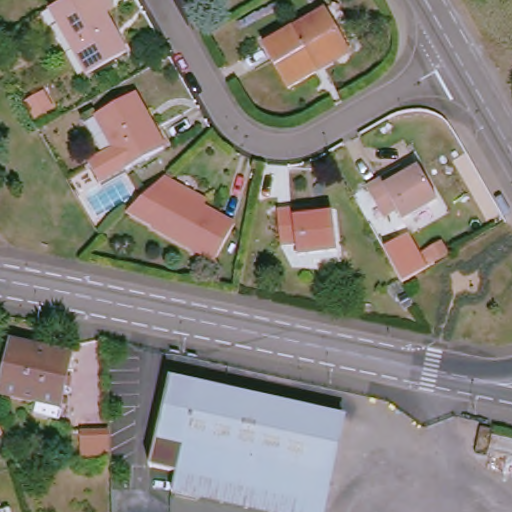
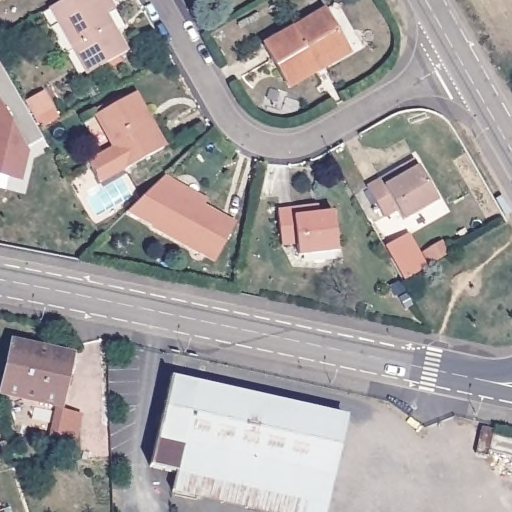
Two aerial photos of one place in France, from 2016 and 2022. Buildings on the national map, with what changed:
unchanged [(97,0),(108,0),(113,9),(105,15),(116,40),(119,39),(127,52),(87,74),(58,24),(97,0)]
unchanged [(273,49),(333,14),(353,49),(321,68),(326,75),(298,91),(273,49)]
new [(43,139),(27,148),(23,182),(0,175),(0,65),(43,139)]
unchanged [(43,94),(51,108),(35,117),(26,103),(43,94)]
unchanged [(97,160),(123,148),(107,115),(142,95),(172,148),(136,169),(134,165),(107,180),(97,160)]
unchanged [(400,218),(388,224),(372,195),(403,177),(407,183),(423,175),(442,209),(409,228),(400,218)]
unchanged [(160,189),(175,197),(237,229),(220,263),(205,255),(205,258),(161,232),(130,216),(160,189)]
unchanged [(301,247),(285,248),(281,215),(319,210),(320,217),(337,216),(341,254),(302,259),(301,247)]
unchanged [(439,239),(446,254),(433,261),(427,264),(420,251),(425,248),(439,239)]
unchanged [(60,406),(1,391),(12,342),(50,349),(71,354),(63,393),(60,406)]
unchanged [(188,449),(181,476),(156,469),(174,382),(350,422),(336,483),(188,449)]
unchanged [(112,428),(113,444),(113,455),(84,456),(83,429),(112,428)]
unchanged [(336,483),(330,512),(256,512),(177,494),(181,476),(188,449),(336,483)]

